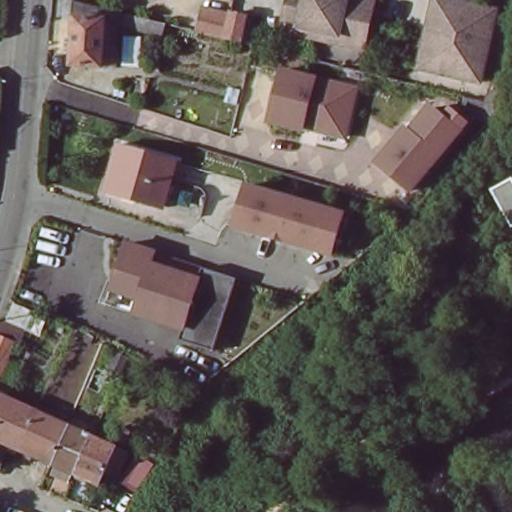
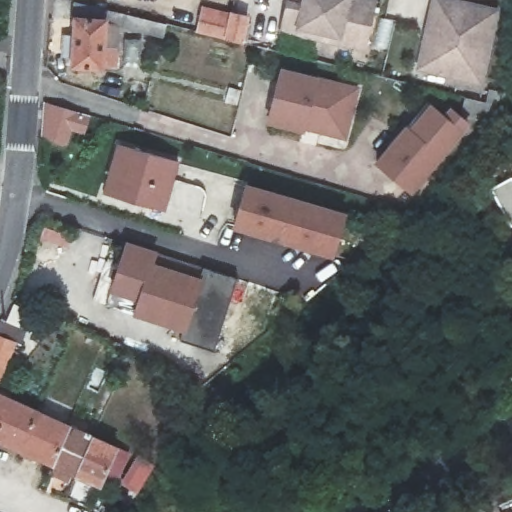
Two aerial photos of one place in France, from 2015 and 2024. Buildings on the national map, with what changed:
unchanged [(292,12),(295,0),(342,0),(381,11),(367,59),(340,52),(286,36),(292,12)]
unchanged [(103,72),(71,70),(76,23),(71,23),(74,4),(143,22),(168,29),(164,44),(141,36),(123,32),(120,73),(103,72)]
unchanged [(437,23),(439,4),(502,13),(492,86),(445,80),(429,77),(437,23)]
unchanged [(238,22),(239,13),(257,17),(249,47),(232,43),(204,36),(210,15),(238,22)]
unchanged [(278,126),(272,124),(286,74),(360,94),(347,141),(284,124),(284,127),(278,126)]
unchanged [(463,122),(465,112),(482,117),(485,103),(496,105),(494,120),(480,137),(463,122)]
unchanged [(376,173),(404,139),(409,144),(433,115),(443,123),(449,115),(466,130),(460,137),(408,201),(376,173)]
unchanged [(118,142),(181,161),(166,209),(103,190),(118,142)]
unchanged [(502,165),(510,182),(512,181),(512,207),(498,213),(481,174),(502,165)]
unchanged [(253,188),(351,218),(338,258),(241,228),(253,188)]
unchanged [(218,353),(184,342),(188,330),(113,305),(133,245),(161,254),(208,270),(243,281),(218,353)]
unchanged [(38,332),(29,328),(15,322),(8,319),(15,302),(22,305),(36,311),(45,315),(38,332)]
unchanged [(0,369),(0,334),(13,341),(0,369)]
unchanged [(86,335),(93,339),(89,346),(83,343),(86,335)]
unchanged [(115,353),(127,358),(118,378),(106,372),(115,353)]
unchanged [(180,361),(203,373),(196,384),(175,373),(180,361)]
unchanged [(93,370),(104,375),(96,393),(85,388),(93,370)]
unchanged [(6,442),(0,439),(0,392),(35,408),(18,447),(6,442)]
unchanged [(18,447),(35,408),(66,422),(48,461),(18,447)]
unchanged [(136,419),(143,437),(145,441),(135,445),(134,445),(129,447),(128,442),(121,425),(136,419)]
unchanged [(48,461),(66,422),(94,435),(76,473),(48,461)]
unchanged [(114,484),(101,479),(99,483),(76,473),(94,435),(115,445),(114,447),(127,453),(114,484)]

